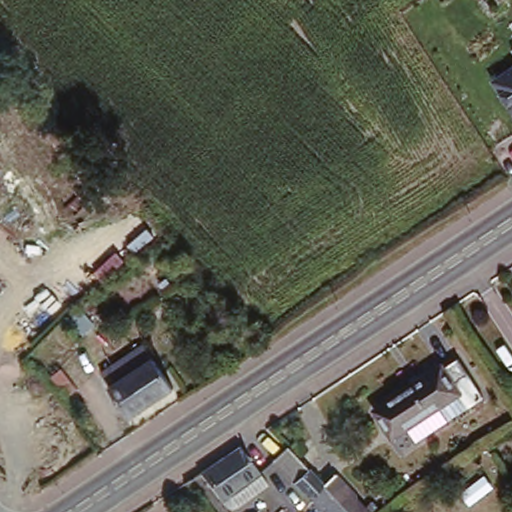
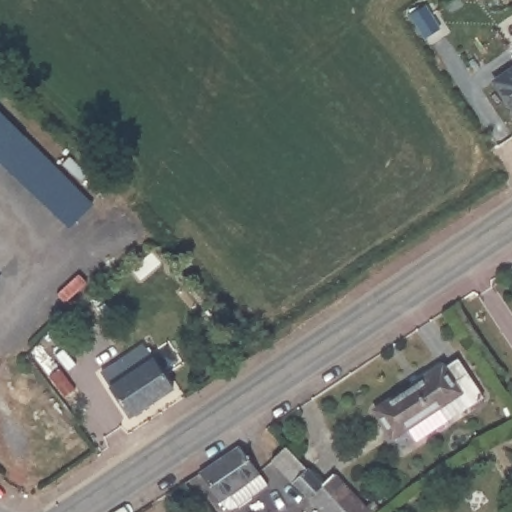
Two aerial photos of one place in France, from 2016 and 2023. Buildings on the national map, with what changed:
new [(429,5),(445,33),(429,43),(411,16),(429,5)]
unchanged [(512,79),(512,91),(507,83),(512,79)]
new [(70,233),(1,165),(0,168),(0,111),(96,207),(70,233)]
unchanged [(0,290),(0,285),(3,288),(0,290)]
unchanged [(178,388),(134,416),(105,373),(148,344),(178,388)]
unchanged [(416,434),(407,420),(393,429),(376,402),(442,359),(443,359),(457,351),(467,366),(468,366),(483,390),(469,399),(460,386),(439,399),(447,414),(416,434)]
unchanged [(69,369),(84,389),(74,397),(59,378),(69,369)]
unchanged [(374,506),(366,512),(357,512),(331,484),(327,479),(314,491),(277,451),(289,438),(324,475),(336,464),(374,506)]
unchanged [(254,469),(263,482),(226,507),(219,506),(214,498),(192,467),(233,440),(254,469)]

